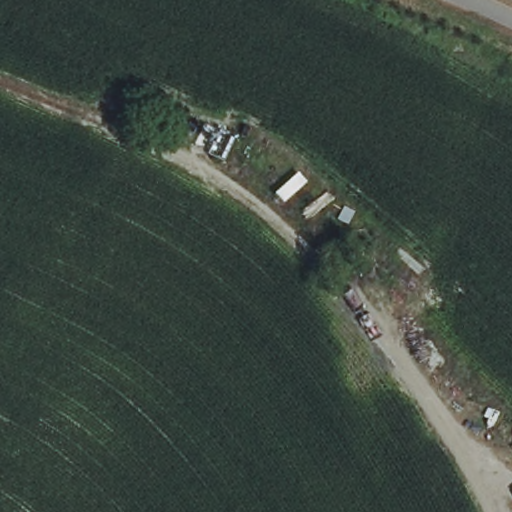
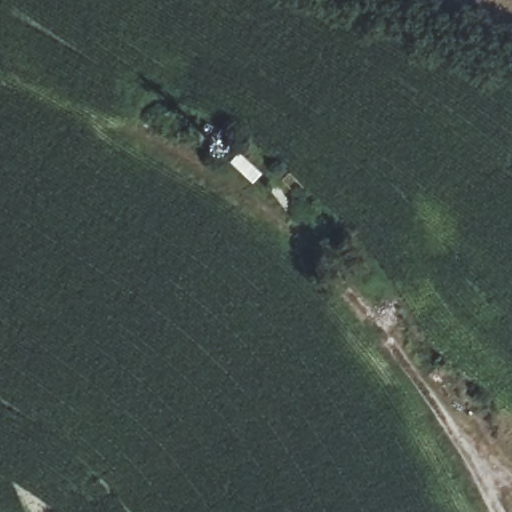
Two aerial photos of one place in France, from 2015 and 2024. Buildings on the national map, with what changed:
unchanged [(345,264),(357,255),(364,264),(352,274),(345,264)]

